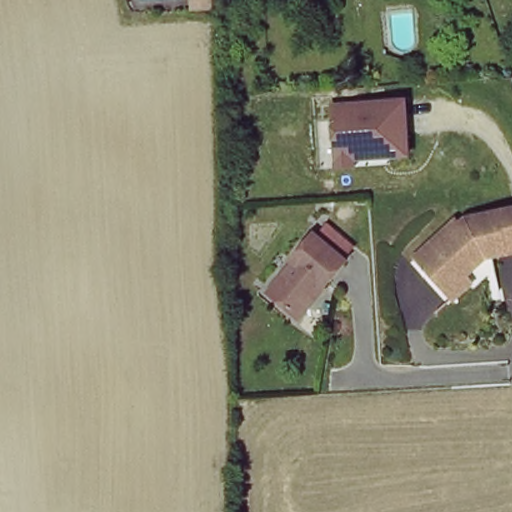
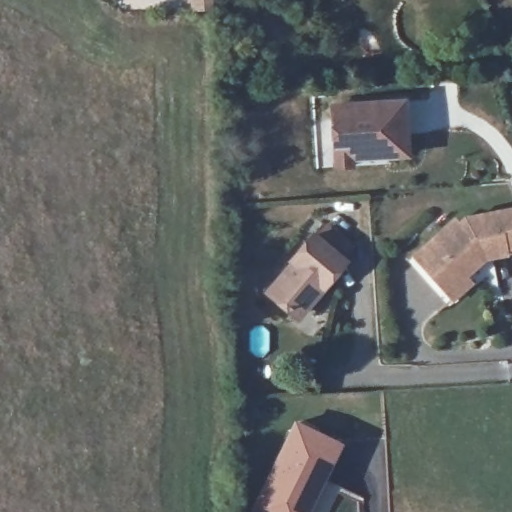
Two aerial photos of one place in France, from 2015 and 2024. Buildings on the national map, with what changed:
unchanged [(200,8),(200,0),(216,0),(215,8),(200,8)]
unchanged [(408,150),(377,152),(372,99),(404,97),(408,150)]
unchanged [(337,162),(336,141),(333,101),(372,99),(377,152),(353,154),(353,161),(337,162)]
unchanged [(443,286),(424,264),(415,254),(430,241),(455,219),(462,225),(474,214),(512,207),(512,244),(504,246),(505,251),(485,255),(464,274),(470,280),(452,297),(443,286)]
unchanged [(292,267),(290,264),(313,237),(346,265),(323,292),(320,289),(296,319),(268,295),(292,267)]
new [(264,478),(293,419),(343,443),(310,512),(249,512),(264,478)]

